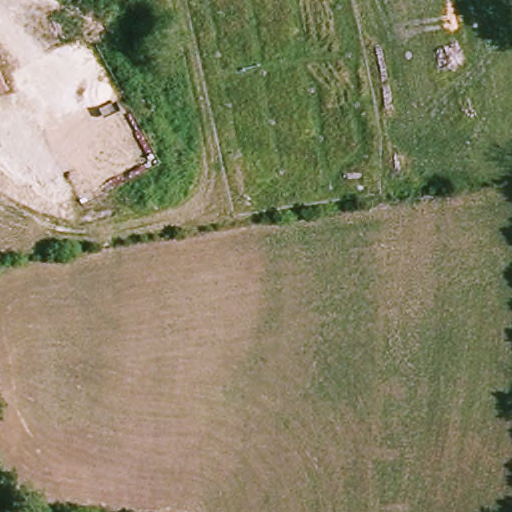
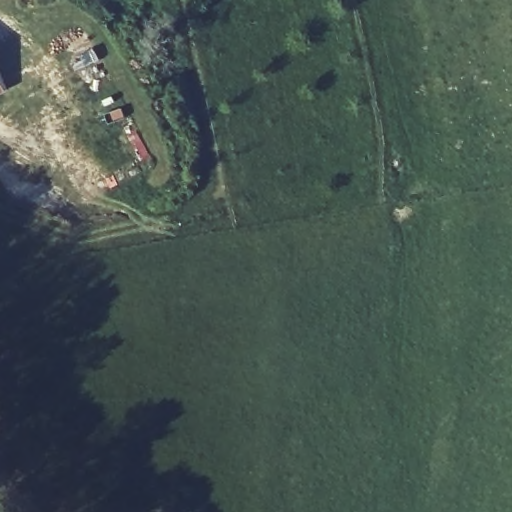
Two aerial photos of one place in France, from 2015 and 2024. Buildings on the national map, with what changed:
unchanged [(0,90),(0,64),(9,87),(0,90)]

